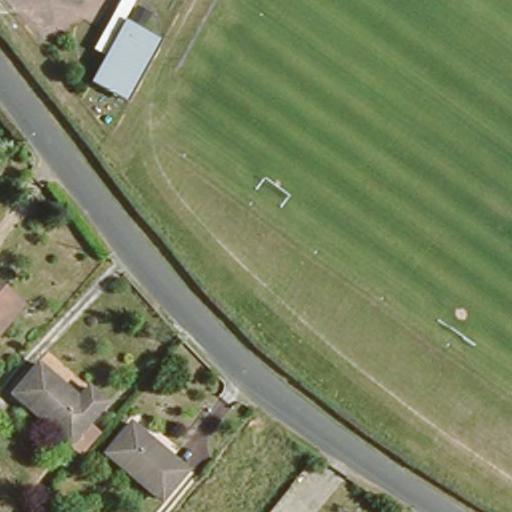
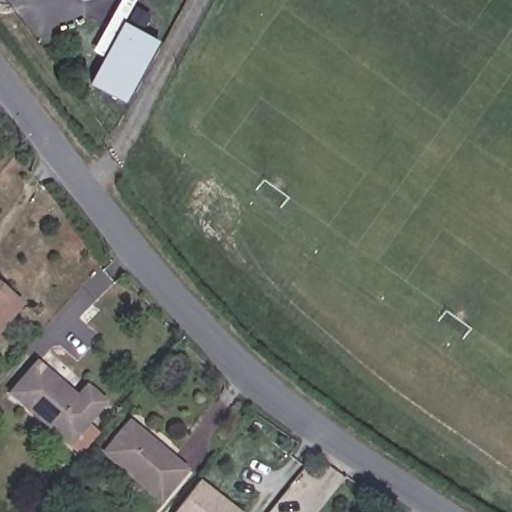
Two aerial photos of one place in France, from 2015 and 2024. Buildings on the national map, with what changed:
unchanged [(90,84),(103,56),(93,50),(120,0),(137,0),(125,21),(160,39),(127,103),(90,84)]
unchanged [(15,294),(0,313),(0,282),(15,294)]
unchanged [(7,392),(32,360),(54,377),(30,409),(7,392)]
unchanged [(76,394),(86,382),(105,395),(72,439),(30,409),(54,377),(76,394)]
unchanged [(102,451),(128,415),(182,455),(187,457),(159,495),(155,492),(102,451)]
new [(202,483),(242,512),(180,512),(202,483)]

